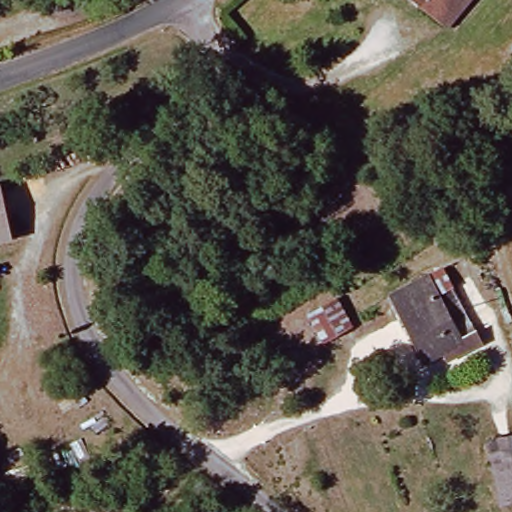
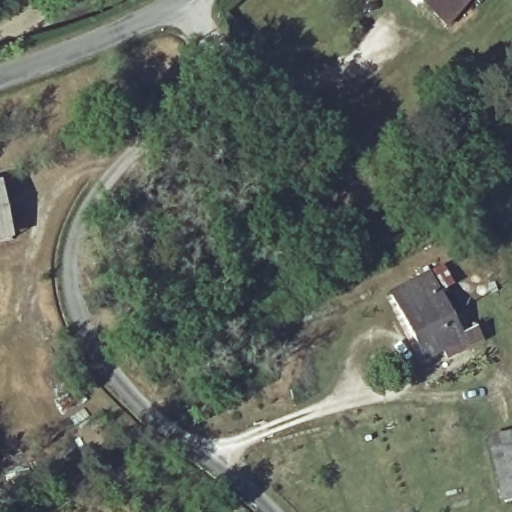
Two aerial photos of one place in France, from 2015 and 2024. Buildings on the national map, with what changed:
unchanged [(406,0),(473,0),(442,34),(406,0)]
unchanged [(13,242),(0,244),(0,186),(2,186),(13,242)]
unchanged [(436,277),(471,344),(436,363),(401,297),(436,277)]
unchanged [(329,301),(344,331),(317,347),(299,317),(329,301)]
unchanged [(486,441),(512,436),(512,507),(500,511),(486,441)]

